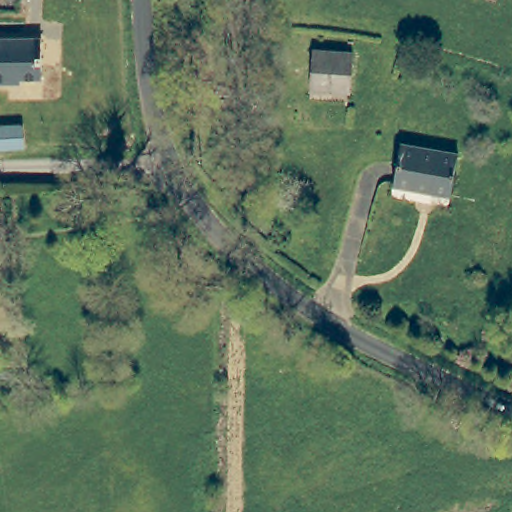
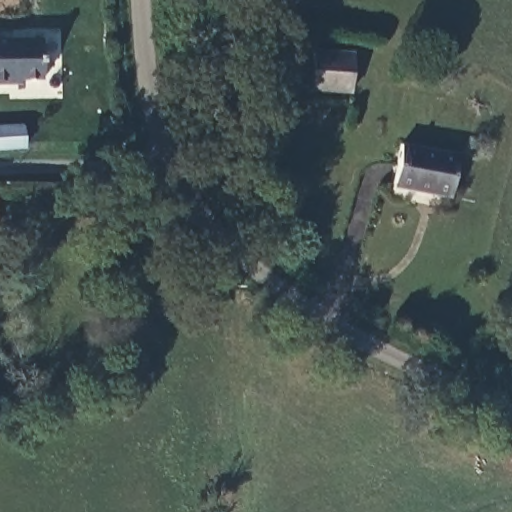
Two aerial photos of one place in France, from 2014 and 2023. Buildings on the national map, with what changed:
unchanged [(0,81),(0,38),(39,38),(40,80),(0,81)]
unchanged [(167,82),(165,48),(195,49),(196,82),(186,82),(185,100),(181,100),(168,99),(167,82)]
unchanged [(348,91),(308,90),(309,53),(350,54),(348,91)]
unchanged [(24,124),(26,149),(0,152),(0,126),(8,125),(21,125),(24,124)]
unchanged [(395,190),(404,137),(459,146),(450,199),(395,190)]
unchanged [(0,405),(0,383),(15,380),(19,402),(0,405)]

